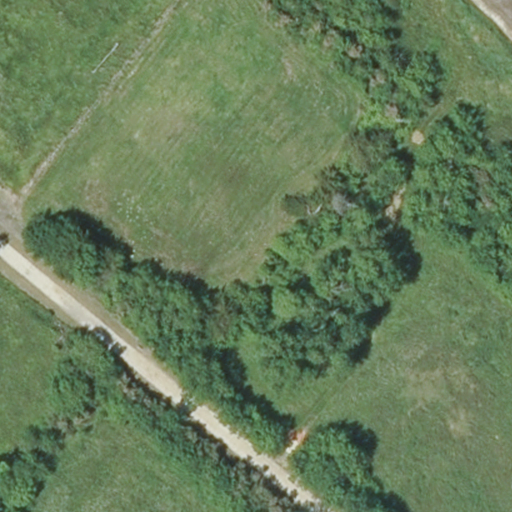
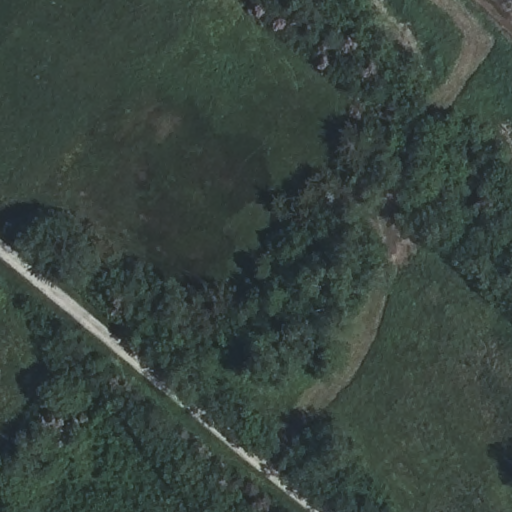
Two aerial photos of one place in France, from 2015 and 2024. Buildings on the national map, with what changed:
[]

